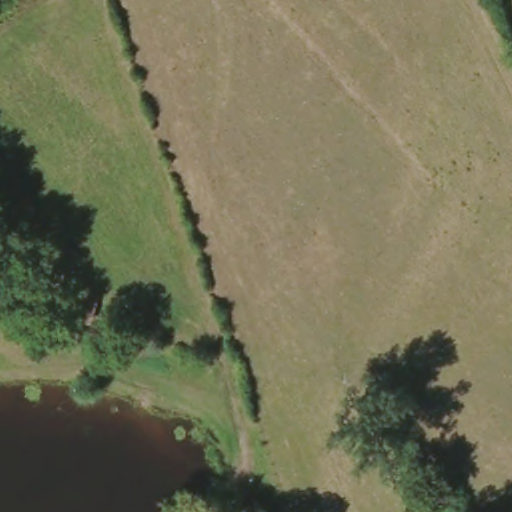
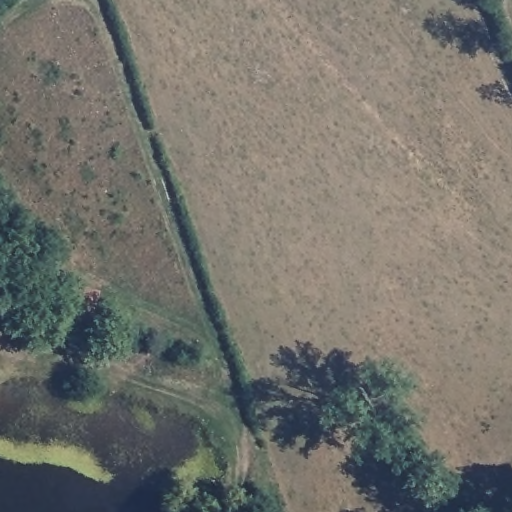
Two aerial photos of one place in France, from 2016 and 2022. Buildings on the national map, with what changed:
unchanged [(70,284),(99,292),(90,325),(61,318),(70,284)]

